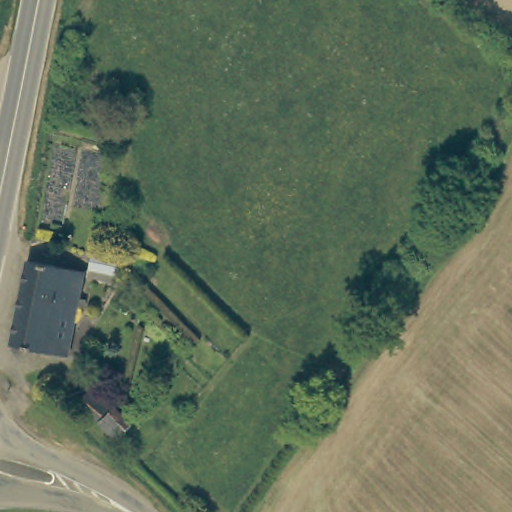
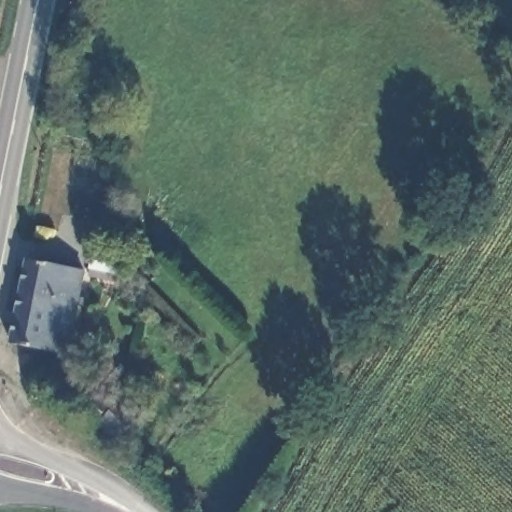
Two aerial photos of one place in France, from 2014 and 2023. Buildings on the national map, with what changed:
unchanged [(86,317),(77,316),(72,346),(18,338),(29,260),(84,267),(87,250),(122,253),(118,278),(82,276),(79,297),(89,298),(86,317)]
unchanged [(119,437),(82,405),(99,387),(136,419),(119,437)]

